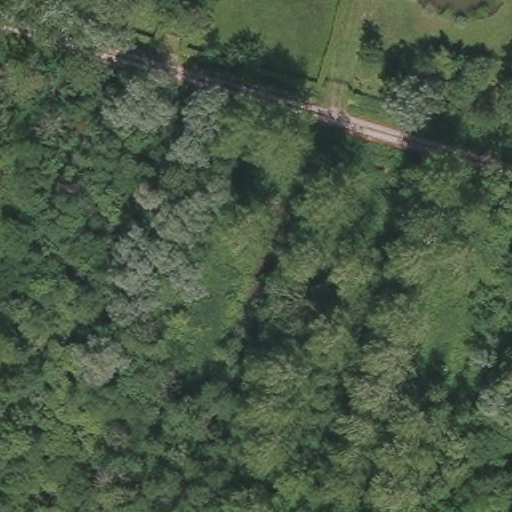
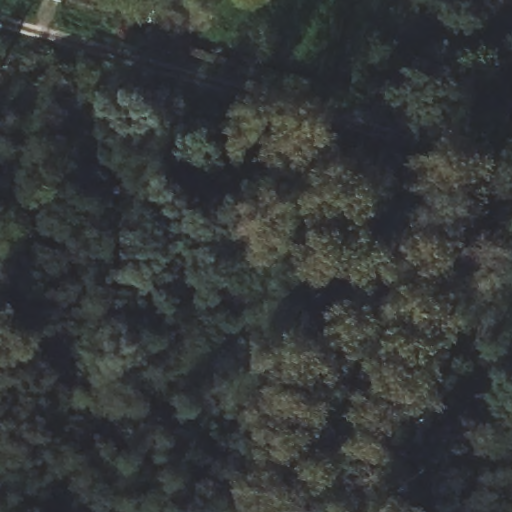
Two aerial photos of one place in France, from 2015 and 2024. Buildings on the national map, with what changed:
[]

